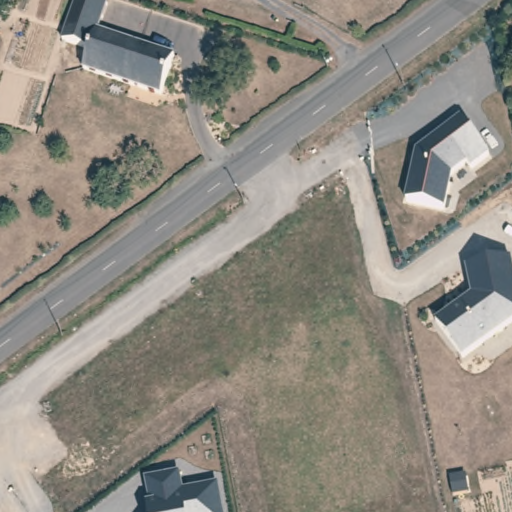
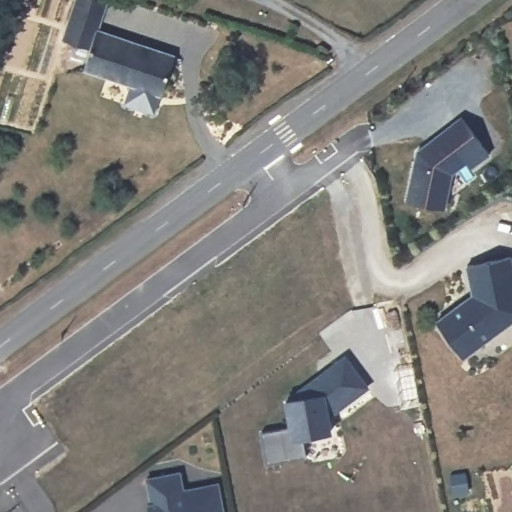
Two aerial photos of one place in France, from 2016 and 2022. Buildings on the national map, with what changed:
unchanged [(0,13),(0,0),(17,0),(12,15),(0,13)]
unchanged [(104,30),(182,55),(169,95),(90,69),(97,49),(69,40),(82,0),(108,0),(114,2),(104,30)]
unchanged [(152,114),(124,105),(130,83),(160,93),(152,114)]
unchanged [(452,174),(446,205),(407,200),(417,149),(462,118),(488,152),(452,174)]
unchanged [(462,362),(436,324),(470,297),(465,268),(511,258),(512,265),(512,321),(462,362)]
new [(330,418),(333,433),(303,438),(306,457),(266,464),(260,431),(288,427),(283,398),(346,354),(371,388),(330,418)]
unchanged [(149,511),(144,479),(181,473),(185,491),(217,484),(223,512),(149,512),(149,511)]

